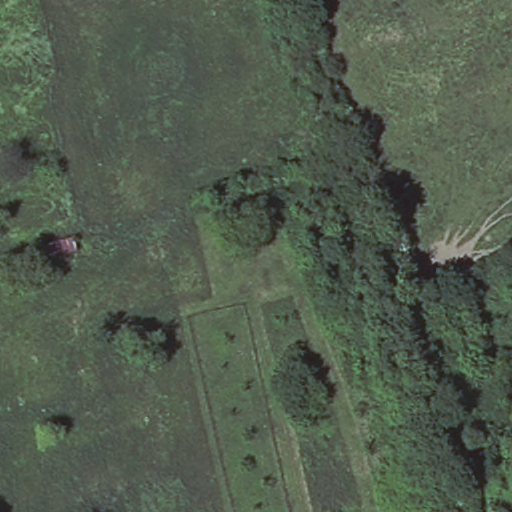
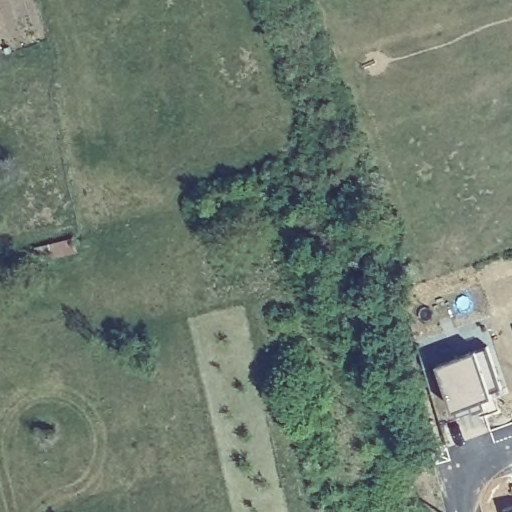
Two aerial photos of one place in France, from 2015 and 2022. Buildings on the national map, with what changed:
new [(487,353),(499,389),(485,392),(488,401),(452,414),(434,372),(487,353)]

